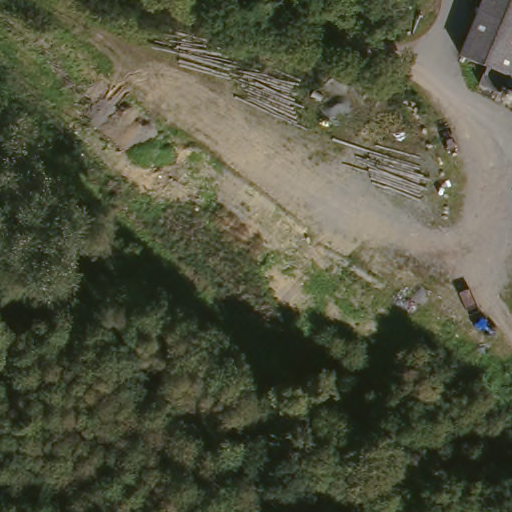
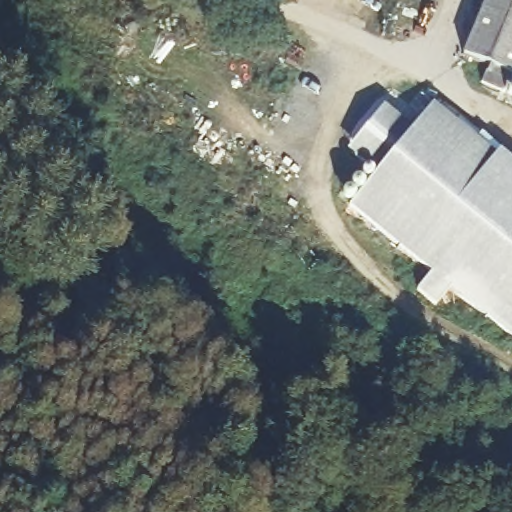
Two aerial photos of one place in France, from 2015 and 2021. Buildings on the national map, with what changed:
unchanged [(505,99),(485,91),(490,75),(465,64),(492,0),(512,0),(512,83),(511,82),(505,99)]
new [(432,307),(413,293),(428,275),(345,208),(335,200),(363,168),(343,152),(382,107),(411,129),(430,104),(494,157),(497,152),(512,164),(512,344),(446,291),(432,307)]

